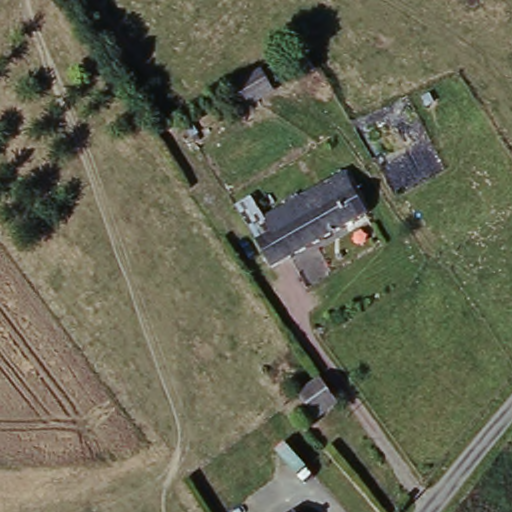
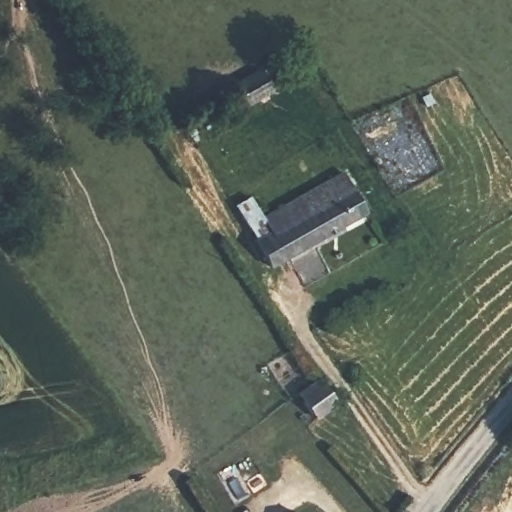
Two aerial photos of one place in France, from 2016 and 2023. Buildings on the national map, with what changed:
unchanged [(234,92),(269,70),(270,72),(278,86),(243,109),(235,94),(234,92)]
unchanged [(347,180),(367,217),(363,219),(271,269),(258,248),(277,237),(270,224),(347,180)]
unchanged [(335,397),(315,411),(300,389),(320,375),(335,397)]
unchanged [(300,512),(296,512),(299,510),(300,512)]

